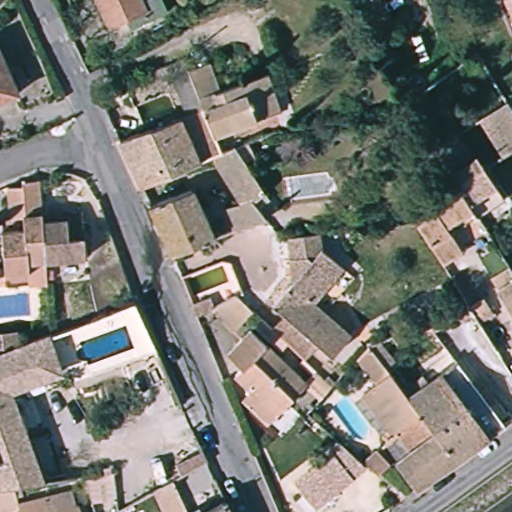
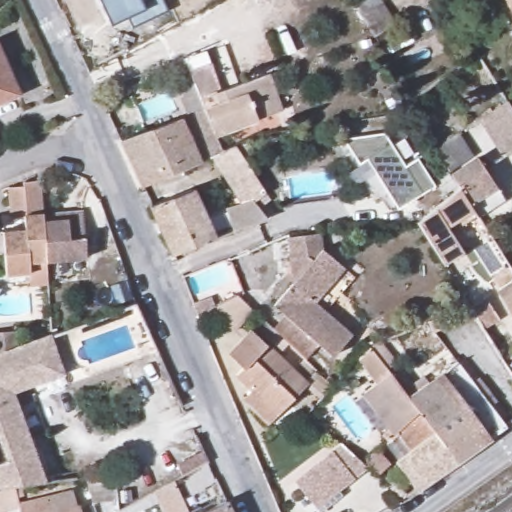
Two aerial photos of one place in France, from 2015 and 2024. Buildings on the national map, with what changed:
unchanged [(132,27),(128,19),(111,26),(99,0),(142,0),(142,1),(145,0),(164,0),(169,10),(132,27)]
unchanged [(367,0),(380,0),(395,24),(375,37),(355,7),(367,0)]
unchanged [(506,0),(512,0),(512,12),(506,0)]
unchanged [(0,102),(0,48),(20,94),(0,102)]
unchanged [(163,70),(180,64),(185,75),(205,69),(215,96),(261,80),(275,115),(210,139),(217,156),(209,160),(135,190),(115,145),(183,119),(163,70)]
unchanged [(413,97),(415,95),(426,113),(415,120),(405,104),(413,97)]
unchanged [(496,110),(512,99),(512,135),(496,110)]
new [(384,135),(405,166),(417,159),(435,186),(398,210),(367,161),(359,166),(342,141),(384,135)]
unchanged [(458,137),(472,159),(450,173),(436,151),(458,137)]
unchanged [(259,197),(248,208),(262,224),(237,233),(223,214),(237,208),(209,160),(217,156),(230,151),(259,197)]
unchanged [(418,224),(436,209),(460,189),(452,176),(478,160),(504,200),(478,217),(476,214),(450,232),(462,251),(442,262),(418,224)]
unchanged [(42,216),(45,261),(45,271),(28,271),(28,275),(5,277),(2,232),(25,230),(25,218),(12,219),(10,189),(24,188),(24,183),(40,182),(42,216)]
unchanged [(193,190),(215,238),(171,255),(150,207),(193,190)]
unchanged [(82,213),(85,258),(45,261),(42,216),(82,213)]
unchanged [(319,233),(321,247),(343,265),(312,302),(350,333),(333,355),(273,305),(292,282),(287,235),(319,233)]
unchanged [(492,280),(510,267),(512,271),(512,309),(492,280)]
unchanged [(205,296),(210,308),(192,315),(187,303),(205,296)]
unchanged [(249,312),(231,330),(210,308),(233,297),(249,312)]
unchanged [(318,342),(306,358),(272,329),(282,313),(318,342)]
unchanged [(237,400),(247,390),(231,376),(238,368),(223,354),(246,330),(303,384),(272,415),(263,425),(237,400)]
unchanged [(15,391),(19,405),(47,483),(15,487),(0,488),(0,334),(15,333),(17,348),(50,335),(55,333),(68,371),(15,391)]
unchanged [(375,381),(356,357),(369,345),(385,373),(375,381)]
unchanged [(452,460),(405,396),(452,363),(500,425),(452,460)]
unchanged [(412,488),(391,461),(407,449),(392,430),(389,433),(358,395),(385,373),(405,396),(452,460),(412,488)]
unchanged [(366,467),(316,508),(293,481),(340,442),(366,467)]
demolished [(357,463),(372,451),(383,462),(371,475),(357,463)]
unchanged [(208,462),(182,477),(177,466),(204,452),(208,462)]
unchanged [(87,480),(112,477),(115,503),(95,506),(87,480)]
unchanged [(45,497),(49,512),(20,512),(19,510),(12,512),(0,512),(0,488),(15,487),(20,502),(45,497)]
unchanged [(53,496),(68,492),(72,506),(79,504),(82,512),(51,512),(57,510),(53,496)]
unchanged [(231,512),(206,512),(227,502),(231,512)]

